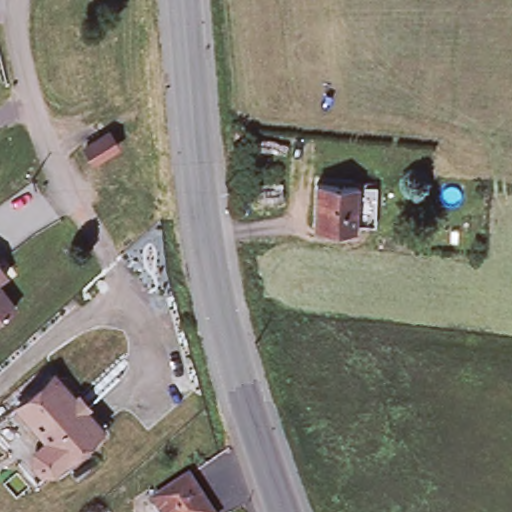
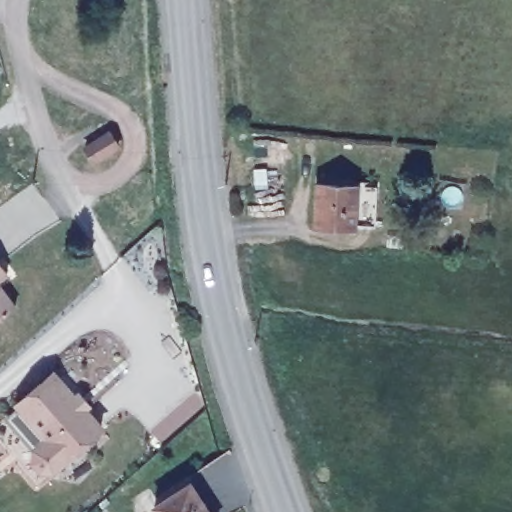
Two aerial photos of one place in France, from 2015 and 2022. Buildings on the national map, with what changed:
unchanged [(83,145),(107,130),(120,151),(97,166),(83,145)]
unchanged [(376,228),(356,227),(356,230),(316,228),(319,185),(359,188),(379,189),(376,228)]
unchanged [(0,281),(0,266),(8,275),(0,281)]
unchanged [(0,321),(0,286),(16,308),(0,321)]
unchanged [(36,467),(36,456),(49,445),(19,410),(54,379),(75,404),(79,400),(88,410),(84,413),(102,434),(53,476),(43,475),(36,467)]
unchanged [(155,510),(194,489),(206,512),(156,512),(155,510)]

